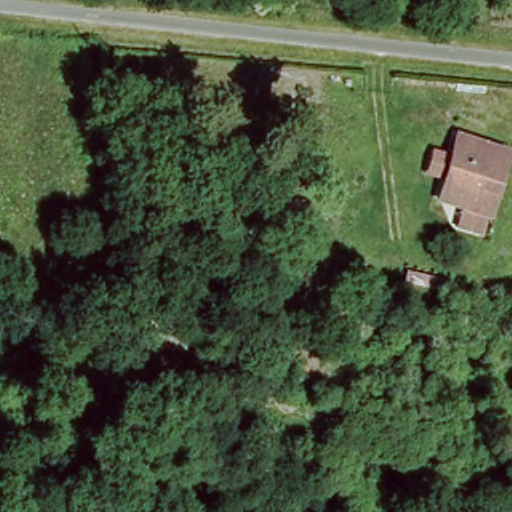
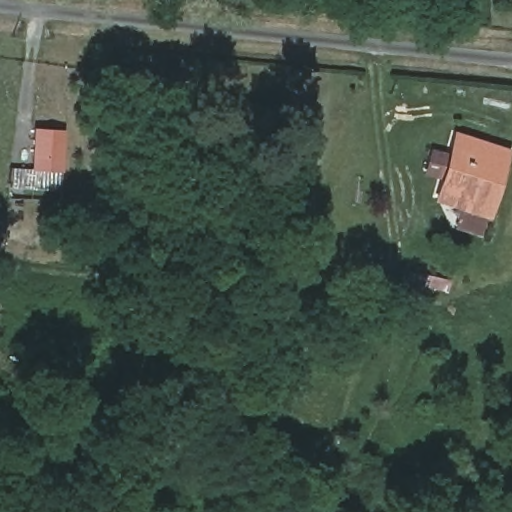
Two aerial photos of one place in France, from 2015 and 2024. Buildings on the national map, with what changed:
new [(65,172),(34,170),(36,129),(67,131),(65,172)]
unchanged [(486,212),(435,197),(455,135),(504,151),(498,170),(492,192),(486,212)]
unchanged [(445,291),(408,285),(410,273),(448,279),(445,291)]

